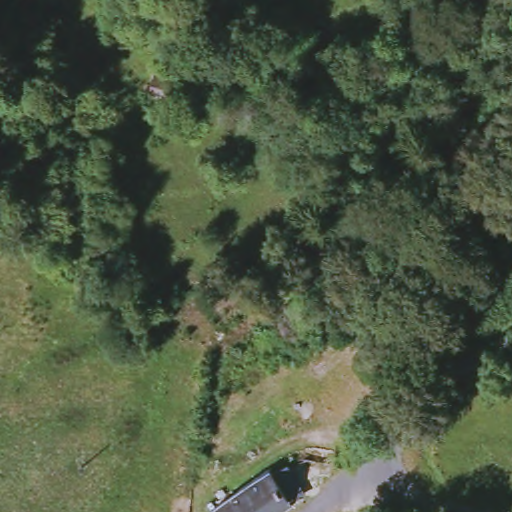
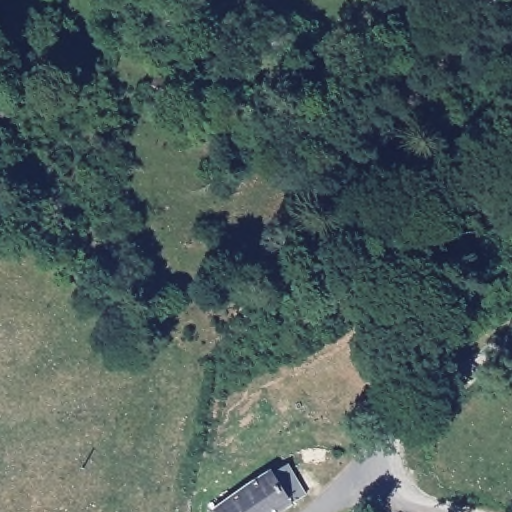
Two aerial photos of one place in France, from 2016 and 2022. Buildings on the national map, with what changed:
unchanged [(183,42),(107,37),(110,0),(186,0),(183,42)]
unchanged [(201,97),(196,116),(172,109),(177,90),(201,97)]
unchanged [(297,507),(290,512),(213,512),(212,511),(273,470),(297,507)]

